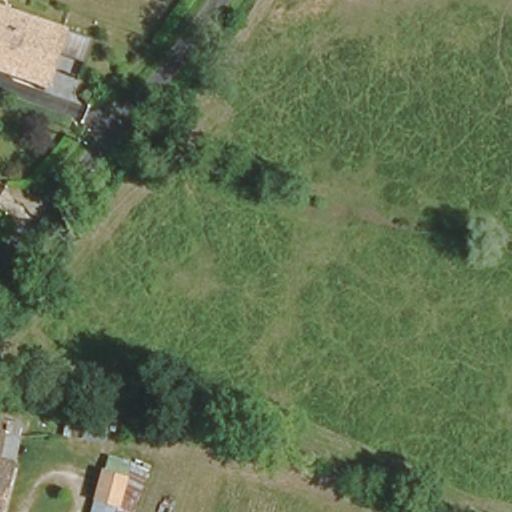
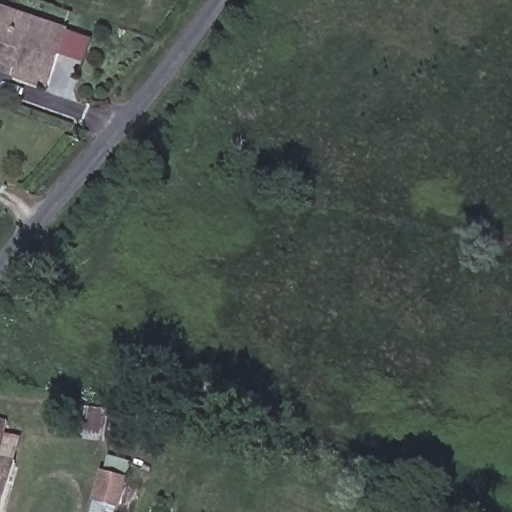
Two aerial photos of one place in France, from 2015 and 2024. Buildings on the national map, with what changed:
unchanged [(67,24),(91,32),(84,54),(59,45),(47,77),(12,65),(0,61),(0,0),(67,24)]
unchanged [(9,422),(6,434),(21,438),(14,462),(0,512),(0,420),(9,422)]
unchanged [(100,468),(112,471),(115,457),(149,467),(135,512),(89,512),(92,500),(100,468)]

